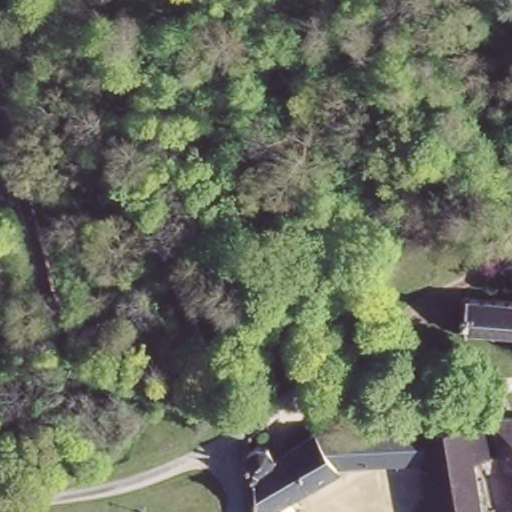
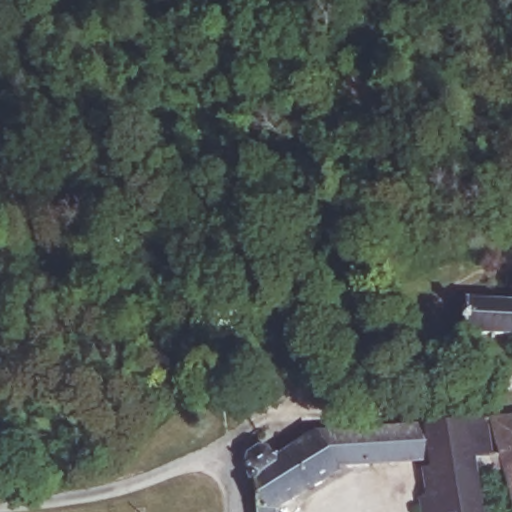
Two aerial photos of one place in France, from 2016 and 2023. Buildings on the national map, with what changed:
unchanged [(466,329),(467,297),(512,299),(512,331),(466,329)]
unchanged [(499,447),(490,415),(512,414),(512,489),(499,447)]
unchanged [(251,475),(246,472),(241,457),(246,449),(251,444),(269,440),(269,442),(271,450),(275,457),(318,425),(466,417),(486,415),(489,449),(486,450),(472,451),(484,512),(422,512),(419,492),(426,485),(421,456),(338,462),(338,466),(273,504),(273,512),(255,512),(251,475)]

